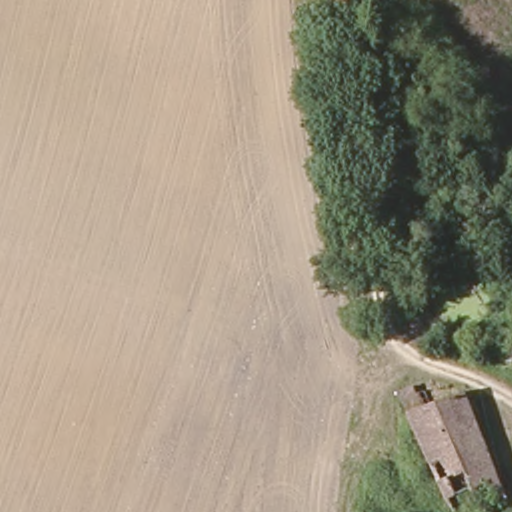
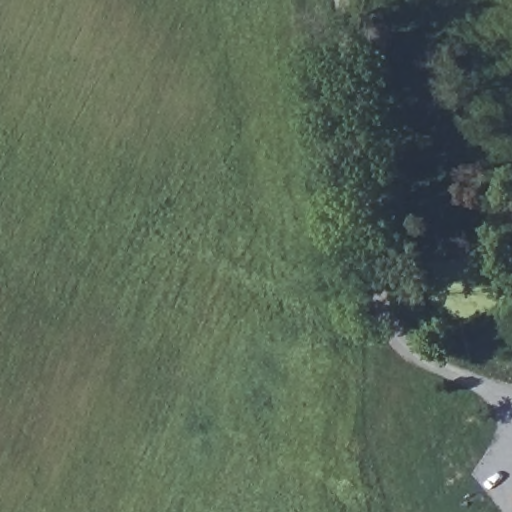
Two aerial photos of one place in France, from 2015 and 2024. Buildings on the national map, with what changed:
demolished [(481,512),(446,512),(431,468),(411,472),(404,441),(415,437),(397,395),(411,387),(422,412),(470,395),(506,502),(481,512)]

